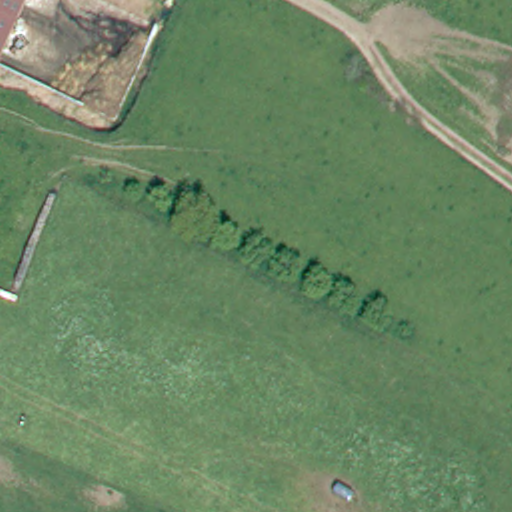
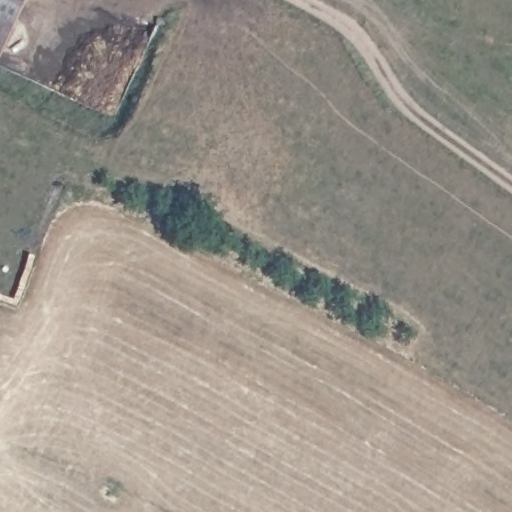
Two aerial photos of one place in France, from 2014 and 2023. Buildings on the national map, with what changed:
unchanged [(0,55),(0,0),(25,0),(0,55)]

